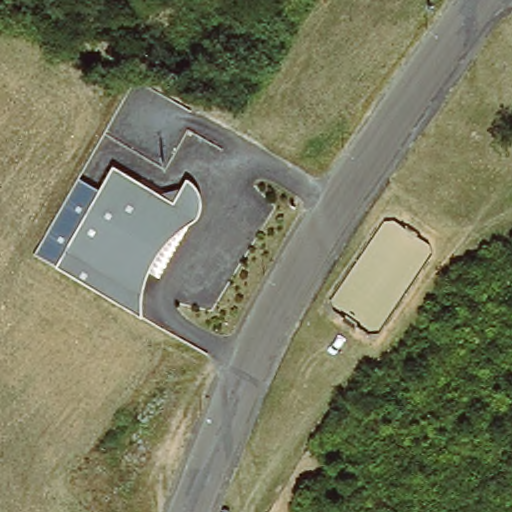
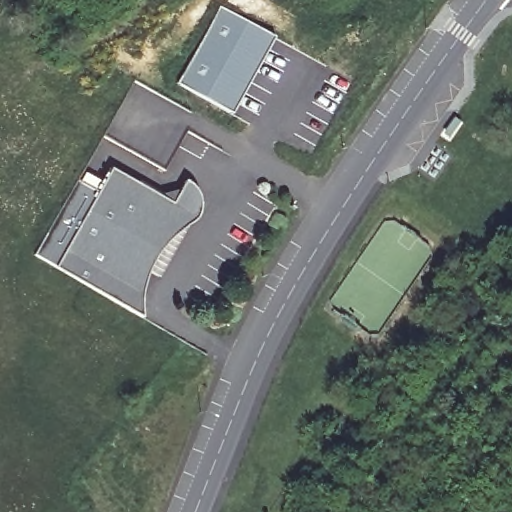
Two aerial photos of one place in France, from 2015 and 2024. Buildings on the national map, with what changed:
new [(217,7),(271,39),(227,116),(172,85),(217,7)]
unchanged [(145,270),(142,280),(140,295),(142,315),(54,266),(111,166),(147,187),(152,181),(157,177),(163,175),(170,174),(178,175),(182,177),(187,180),(195,191),(197,200),(195,209),(193,213),(187,220),(182,224),(155,273),(145,270)]

